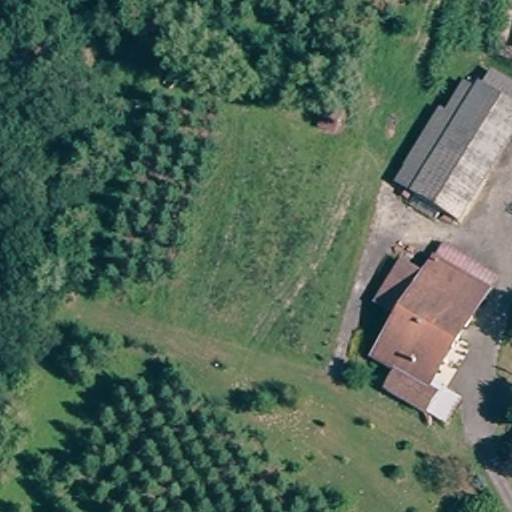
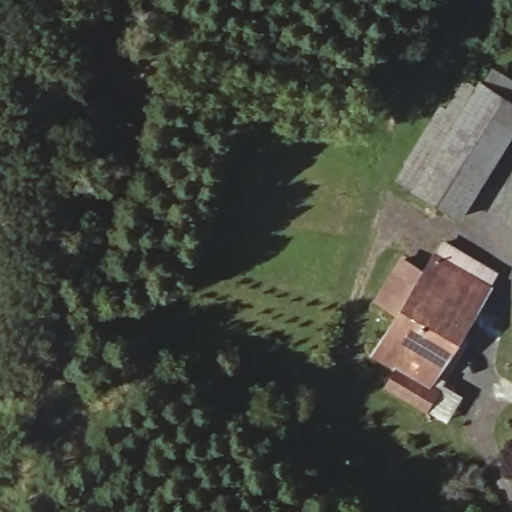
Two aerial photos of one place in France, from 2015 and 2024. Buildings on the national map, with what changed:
unchanged [(512,134),(481,179),(437,144),(486,75),(512,93),(512,134)]
unchanged [(410,184),(437,144),(481,179),(448,227),(406,198),(402,196),(410,184)]
unchanged [(439,242),(495,276),(481,298),(425,265),(439,242)]
unchanged [(434,397),(395,372),(405,357),(378,341),(395,313),(382,305),(405,266),(419,274),(425,265),(481,298),(436,375),(444,380),(434,397)]

